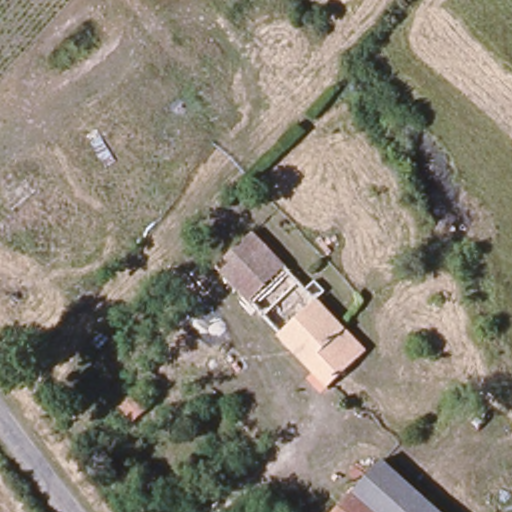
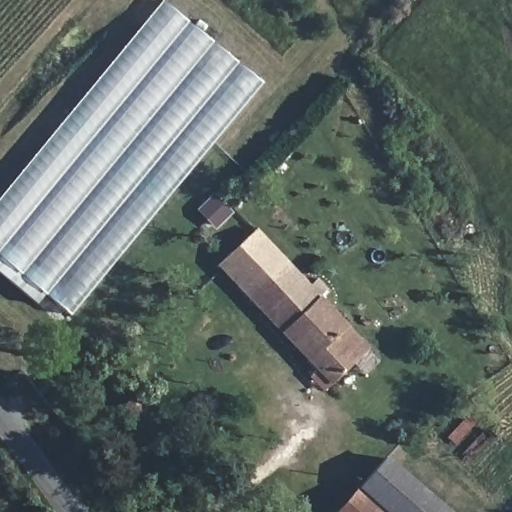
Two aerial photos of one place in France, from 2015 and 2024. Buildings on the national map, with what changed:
new [(161,0),(260,83),(68,316),(0,259),(0,195),(161,0)]
unchanged [(305,285),(317,273),(337,290),(323,305),(371,356),(336,391),(216,272),(255,231),(305,285)]
unchanged [(450,512),(340,512),(388,456),(450,512)]

